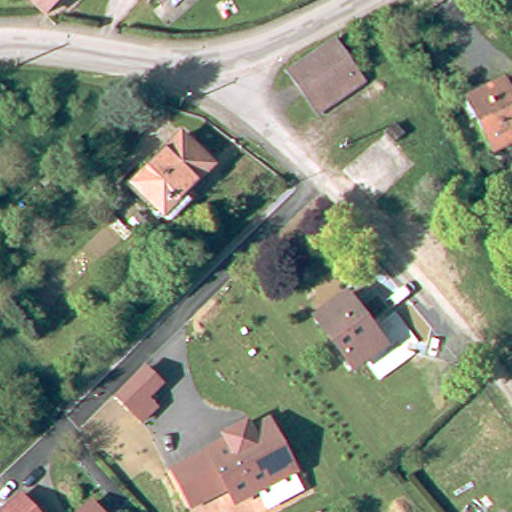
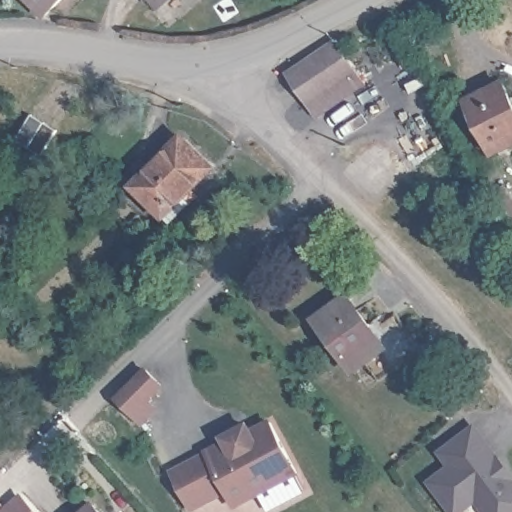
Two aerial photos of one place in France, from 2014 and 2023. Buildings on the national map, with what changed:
unchanged [(38,0),(58,0),(49,10),(38,0)]
unchanged [(152,0),(169,0),(160,8),(152,0)]
unchanged [(290,72),(335,40),(355,71),(362,80),(322,107),(315,112),(309,102),(290,72)]
unchanged [(466,98),(507,76),(512,85),(512,143),(495,152),(466,98)]
new [(32,115),(57,130),(42,156),(16,140),(32,115)]
unchanged [(168,210),(137,182),(185,134),(215,162),(168,210)]
unchanged [(512,204),(512,229),(487,188),(500,182),(512,204)]
unchanged [(360,367),(320,318),(347,296),(387,343),(360,367)]
unchanged [(166,386),(152,399),(160,408),(142,427),(112,397),(145,366),(166,386)]
unchanged [(217,431),(215,426),(230,418),(237,414),(241,421),(260,410),(287,461),(285,462),(294,478),(285,483),(257,497),(249,481),(225,493),(217,478),(182,497),(162,460),(217,431)]
new [(428,480),(447,466),(437,451),(477,423),(512,472),(512,512),(485,512),(477,502),(464,512),(451,512),(428,480)]
unchanged [(0,511),(0,509),(19,492),(36,512),(1,512),(0,511)]
unchanged [(88,496),(103,512),(71,512),(88,496)]

